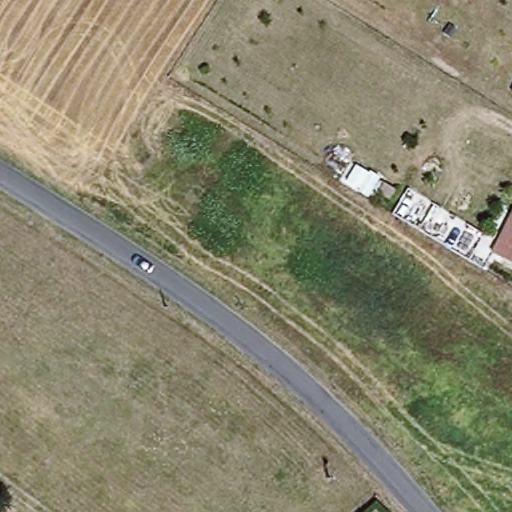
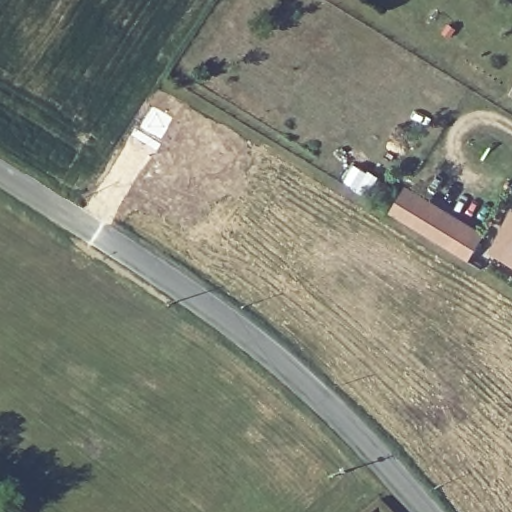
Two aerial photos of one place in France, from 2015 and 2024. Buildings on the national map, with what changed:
new [(391,212),(407,185),(485,233),(470,260),(391,212)]
unchanged [(512,213),(512,248),(498,241),(512,213)]
unchanged [(512,248),(512,264),(506,261),(512,248)]

